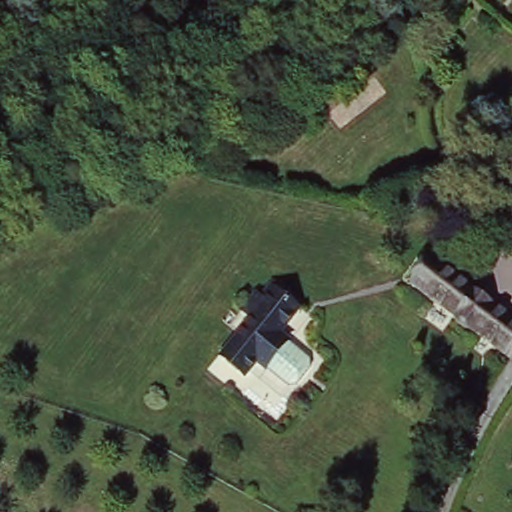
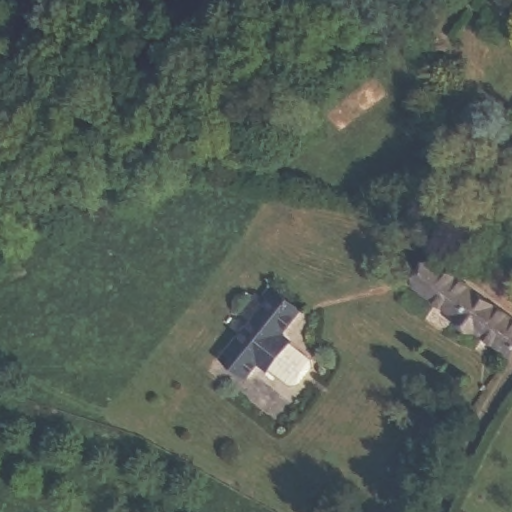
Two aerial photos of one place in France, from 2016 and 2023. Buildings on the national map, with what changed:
unchanged [(433,253),(512,312),(512,341),(508,347),(414,276),(433,253)]
unchanged [(250,315),(240,307),(254,289),(259,293),(268,281),(298,304),(277,329),(287,336),(286,337),(308,354),(309,362),(295,379),(287,380),(265,363),(265,364),(255,356),(246,369),(223,350),(250,315)]

